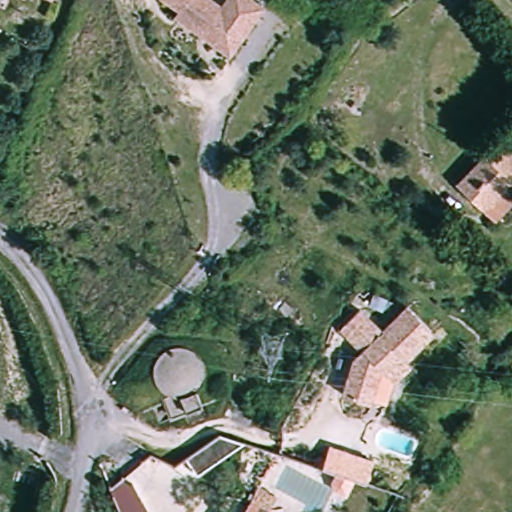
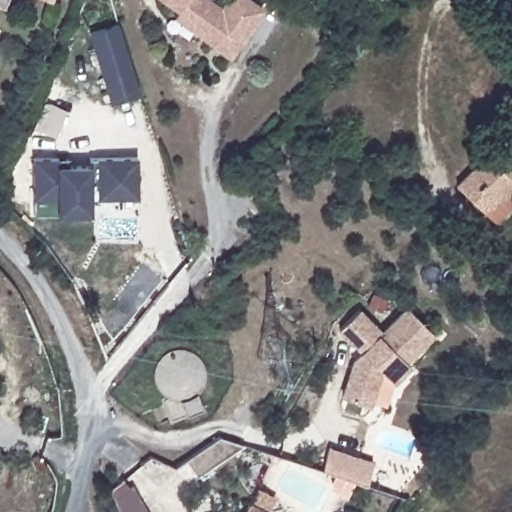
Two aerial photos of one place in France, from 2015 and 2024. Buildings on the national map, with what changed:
unchanged [(0,8),(0,0),(12,0),(10,11),(0,8)]
unchanged [(210,37),(178,17),(181,11),(162,0),(212,0),(224,8),(229,0),(252,0),(262,6),(243,41),(236,52),(210,37)]
new [(88,33),(119,24),(140,94),(111,104),(88,33)]
unchanged [(512,191),(507,187),(484,209),(459,182),(504,142),(512,134),(512,191)]
new [(138,156),(140,198),(92,200),(91,213),(56,215),(34,214),(33,157),(57,157),(56,164),(89,164),(89,159),(97,158),(138,156)]
demolished [(393,173),(420,160),(426,173),(399,187),(393,173)]
unchanged [(396,385),(383,372),(370,407),(344,398),(356,363),(365,355),(358,347),(342,332),(360,312),(384,335),(408,311),(409,309),(415,315),(435,335),(407,363),(412,368),(396,385)]
unchanged [(220,447),(227,457),(194,478),(187,467),(220,447)]
unchanged [(369,483),(357,480),(347,497),(332,488),(339,474),(324,468),(333,447),(374,462),(369,483)]
unchanged [(139,512),(118,512),(109,492),(126,484),(139,512)]
new [(133,485),(147,512),(139,512),(127,487),(133,485)]
unchanged [(260,487),(277,498),(268,510),(268,512),(245,512),(252,501),(260,487)]

